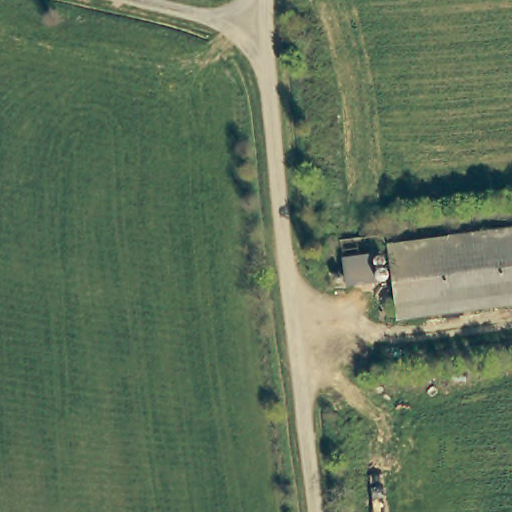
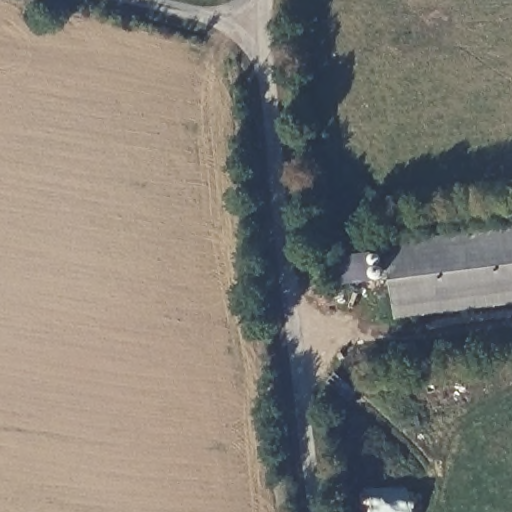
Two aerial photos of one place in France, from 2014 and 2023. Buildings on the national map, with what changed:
unchanged [(512,302),(395,318),(385,244),(512,227),(512,302)]
unchanged [(342,282),(339,258),(368,254),(371,278),(342,282)]

